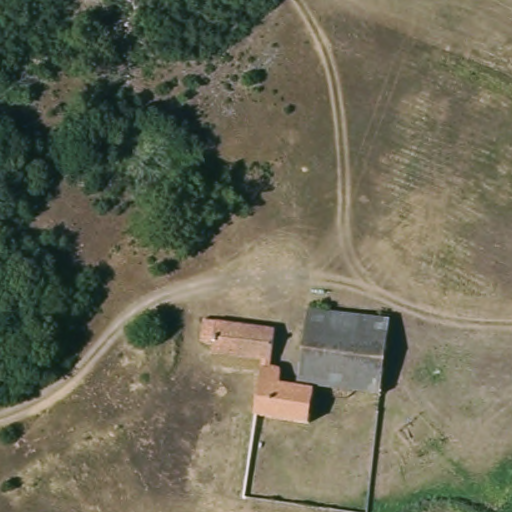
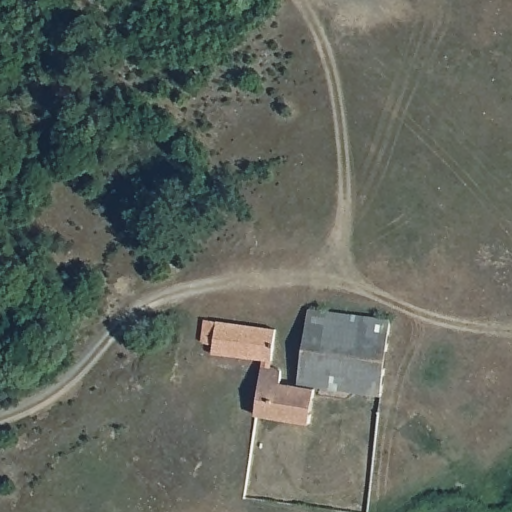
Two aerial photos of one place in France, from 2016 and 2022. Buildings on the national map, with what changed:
unchanged [(391,317),(382,390),(300,381),(308,308),(391,317)]
unchanged [(190,329),(192,317),(274,328),(270,360),(196,351),(198,330),(190,329)]
unchanged [(281,368),(279,384),(300,386),(344,390),(340,425),(255,416),(261,366),(281,368)]

